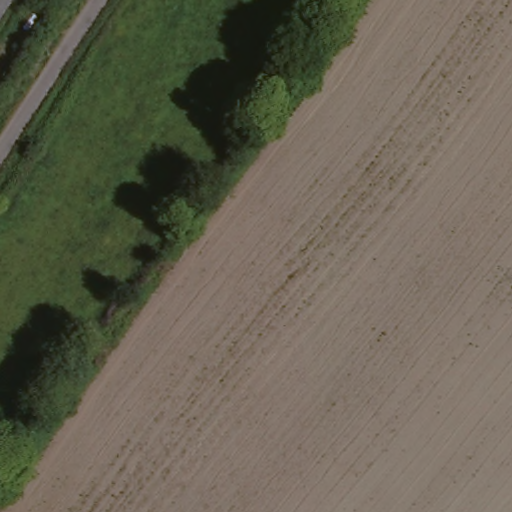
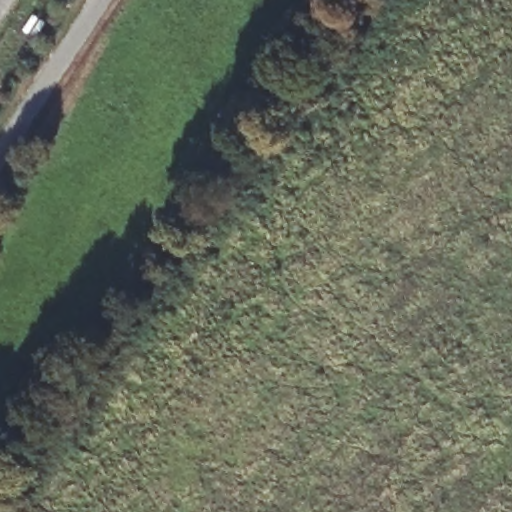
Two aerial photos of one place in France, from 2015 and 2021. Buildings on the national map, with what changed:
unchanged [(0,0),(19,0),(0,30),(0,0)]

